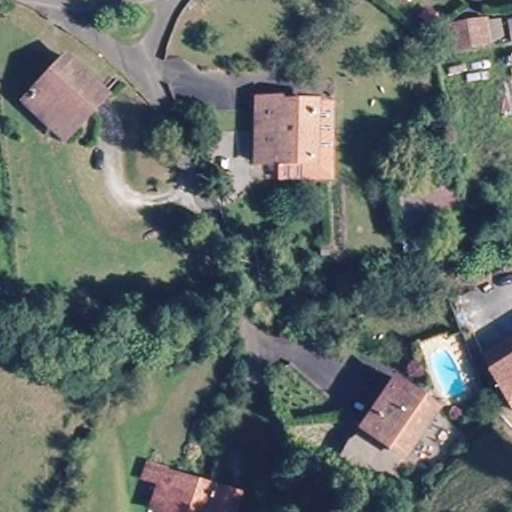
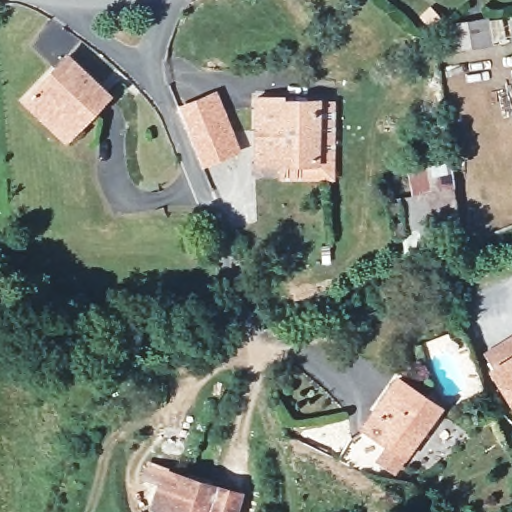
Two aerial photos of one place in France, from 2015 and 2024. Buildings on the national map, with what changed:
unchanged [(482,15),(485,38),(452,43),(448,20),(482,15)]
unchanged [(65,134),(27,100),(65,56),(103,91),(65,134)]
new [(241,152),(202,169),(177,106),(217,90),(241,152)]
unchanged [(275,94),(275,102),(309,104),(308,157),(268,155),(242,154),(245,102),(245,93),(275,94)]
unchanged [(322,99),(322,176),(267,174),(268,155),(308,157),(309,104),(309,98),(322,99)]
demolished [(175,117),(191,109),(200,129),(184,135),(175,117)]
unchanged [(452,166),(451,229),(397,232),(396,197),(407,196),(408,168),(452,166)]
unchanged [(496,375),(498,373),(490,355),(512,342),(512,400),(496,375)]
unchanged [(366,424),(395,385),(411,398),(437,417),(431,425),(408,456),(366,424)]
unchanged [(339,454),(294,441),(301,419),(346,436),(339,454)]
unchanged [(155,472),(157,464),(183,473),(180,481),(202,488),(223,495),(219,512),(162,512),(146,506),(155,472)]

